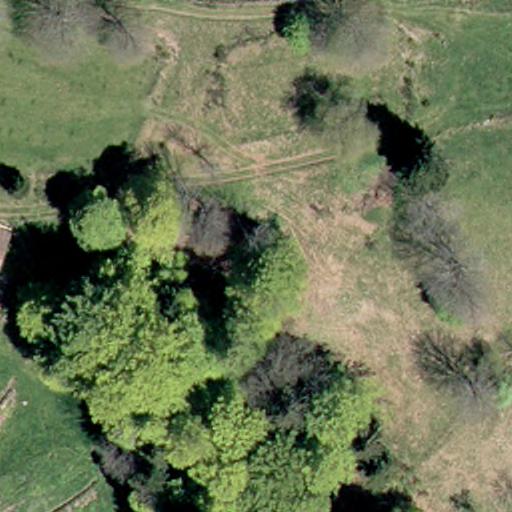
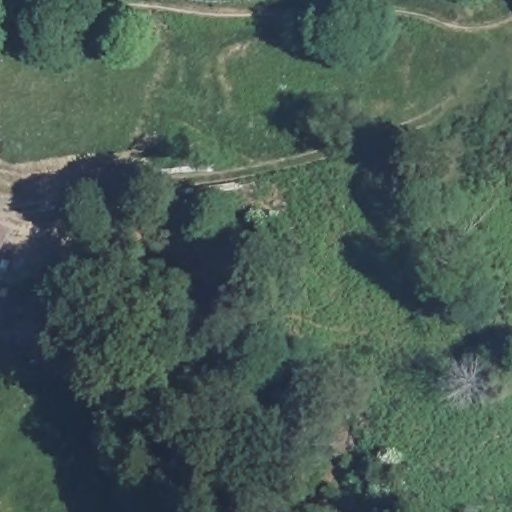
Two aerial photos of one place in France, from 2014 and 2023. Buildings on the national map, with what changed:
unchanged [(0,227),(5,228),(0,244),(0,227)]

